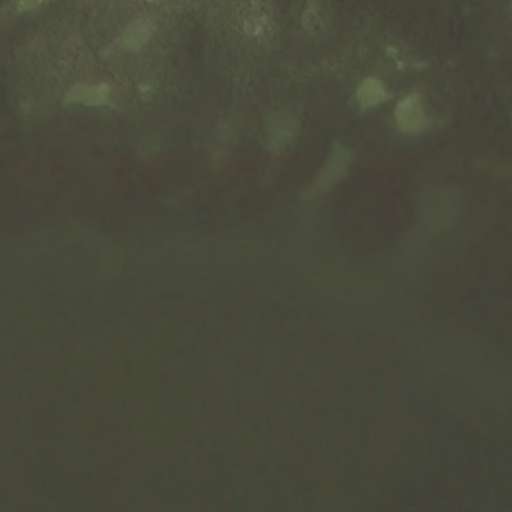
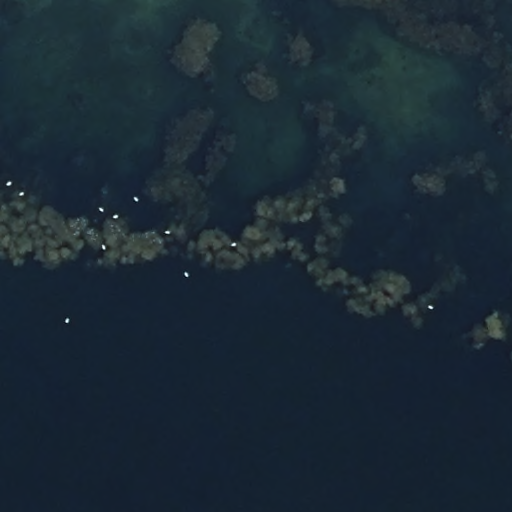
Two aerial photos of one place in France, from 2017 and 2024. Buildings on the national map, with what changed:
unchanged [(319,281),(313,284),(313,292),(315,298),(305,301),(305,297),(298,294),(299,280),(314,274),(319,281)]

